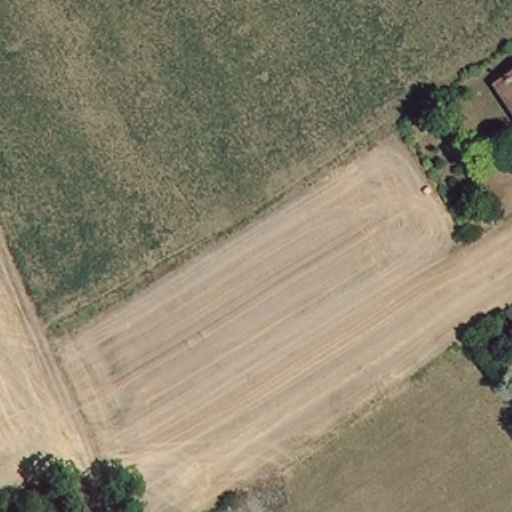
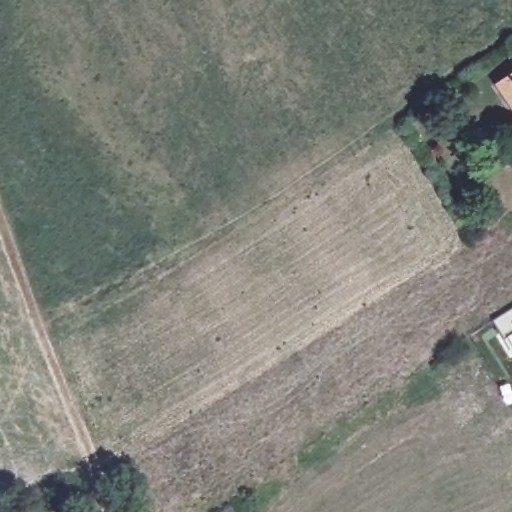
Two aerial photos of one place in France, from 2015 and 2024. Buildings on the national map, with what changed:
unchanged [(502,84),(512,77),(512,99),(502,84)]
new [(512,307),(512,330),(501,337),(491,320),(512,307)]
new [(501,337),(512,330),(512,358),(510,359),(497,339),(501,337)]

